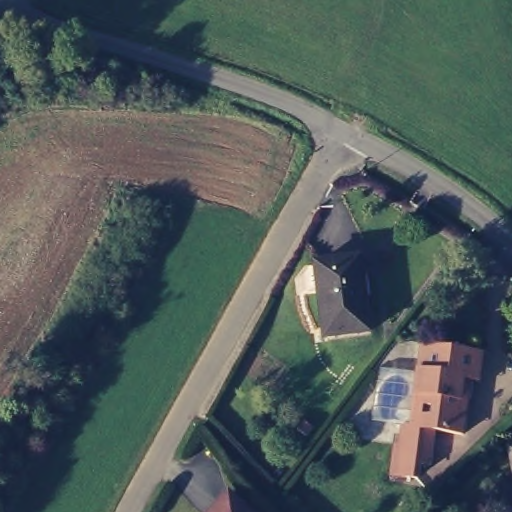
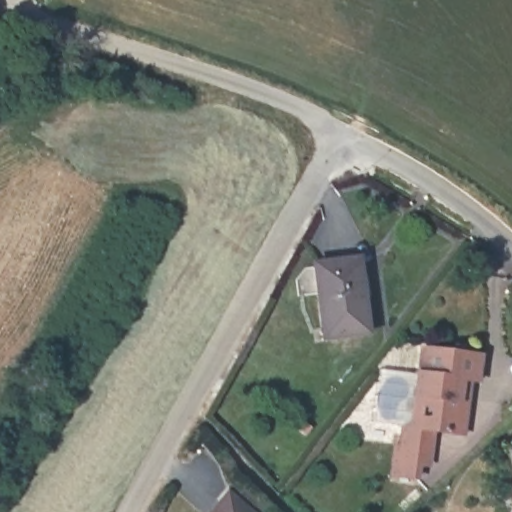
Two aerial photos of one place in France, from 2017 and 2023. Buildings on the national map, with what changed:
unchanged [(369,253),(376,330),(331,335),(324,259),(369,253)]
unchanged [(476,382),(461,380),(457,399),(467,401),(460,434),(433,430),(427,465),(416,463),(413,477),(400,475),(410,425),(415,398),(420,374),(424,347),(438,350),(481,357),(476,382)]
unchanged [(231,493),(254,512),(215,512),(231,493)]

